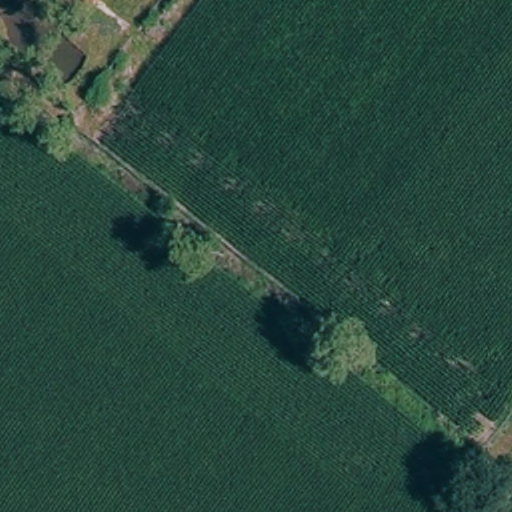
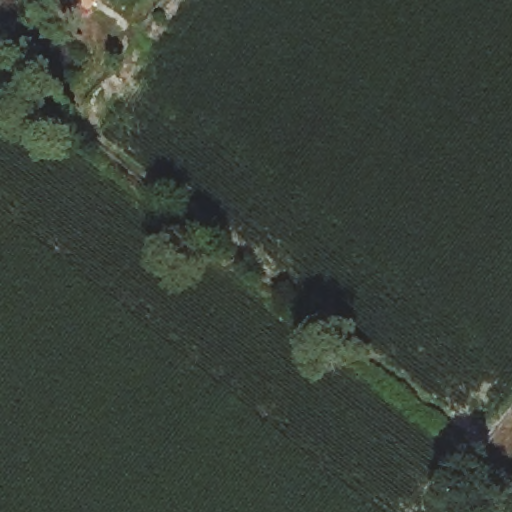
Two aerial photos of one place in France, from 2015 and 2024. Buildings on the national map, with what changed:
unchanged [(74,0),(99,0),(87,14),(74,0)]

